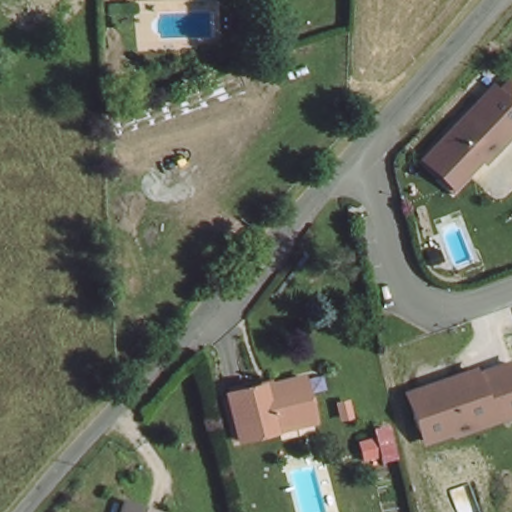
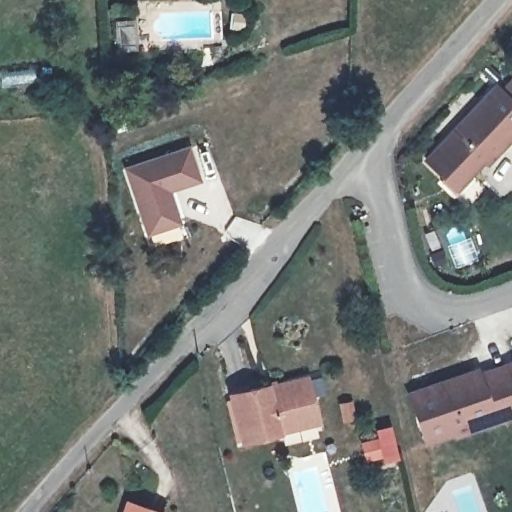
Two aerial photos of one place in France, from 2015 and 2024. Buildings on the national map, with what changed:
unchanged [(422,157),(478,99),(492,84),(496,87),(512,103),(512,129),(510,131),(483,160),(479,156),(464,171),(451,185),(440,175),(422,157)]
new [(175,229),(145,239),(123,177),(184,156),(194,186),(173,193),(171,187),(161,191),(175,229)]
unchanged [(407,391),(480,367),(485,372),(512,362),(512,419),(425,445),(407,391)]
unchanged [(279,430),(242,438),(231,393),(307,376),(316,413),(318,421),(279,430)]
unchanged [(120,512),(125,500),(155,512),(120,512)]

